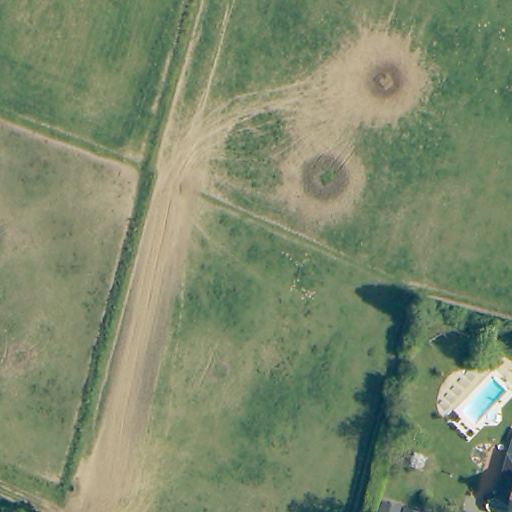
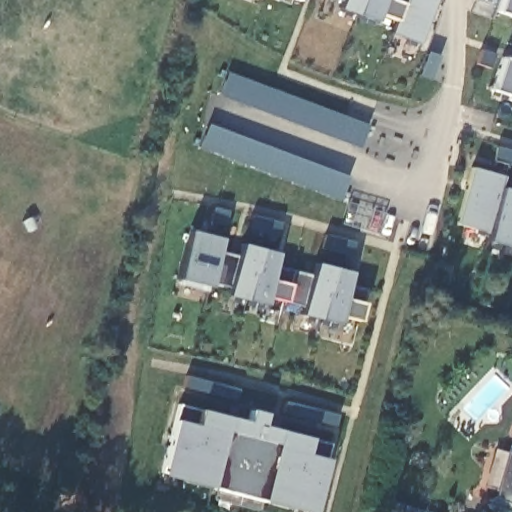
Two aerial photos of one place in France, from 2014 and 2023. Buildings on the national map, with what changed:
new [(288,4),(276,0),(292,0),(288,4)]
new [(420,44),(390,33),(396,22),(377,15),(374,21),(338,9),(341,0),(437,0),(420,44)]
new [(512,15),(497,11),(500,0),(512,0),(512,21),(510,21),(512,15)]
new [(507,93),(492,90),(502,57),(512,60),(512,101),(505,98),(507,93)]
new [(217,95),(227,71),(368,125),(358,148),(217,95)]
new [(199,147),(207,124),(349,177),(340,199),(199,147)]
new [(506,247),(486,241),(489,231),(456,223),(472,168),(505,176),(503,188),(512,191),(512,241),(507,239),(506,247)]
new [(222,238),(218,250),(237,255),(239,245),(278,253),(275,264),(311,273),(312,264),(351,272),(348,283),(367,289),(363,303),(358,321),(339,316),(337,323),(300,314),(302,306),(285,302),(266,297),(264,304),(226,295),(229,285),(211,279),(209,287),(176,278),(189,230),(222,238)]
new [(254,509),(212,499),(216,489),(159,475),(175,420),(179,421),(179,405),(200,410),(247,421),(250,409),(266,413),(262,425),(310,438),(331,443),(327,459),(312,512),(302,512),(258,500),(254,509)]
unchanged [(502,455),(512,457),(512,512),(507,512),(510,501),(492,496),(499,469),(502,455)]

